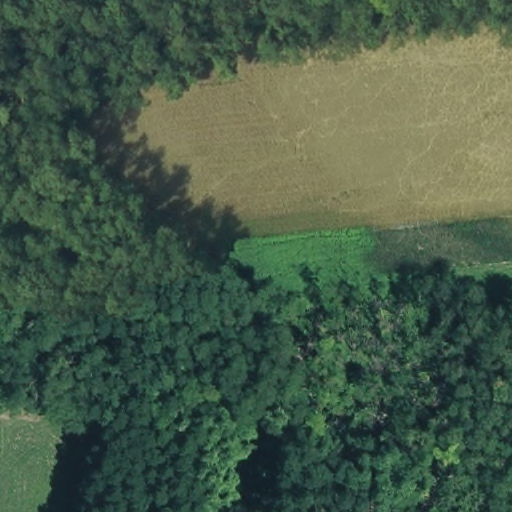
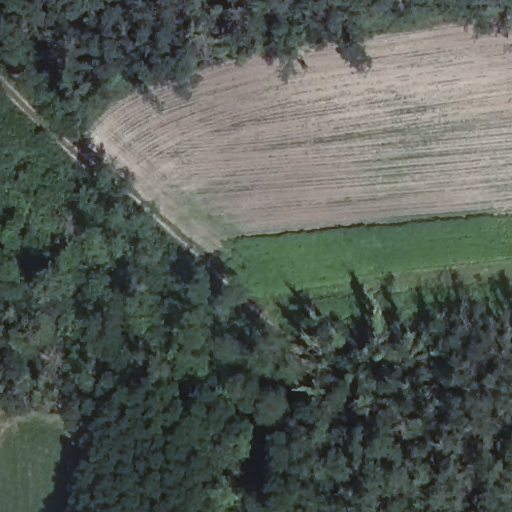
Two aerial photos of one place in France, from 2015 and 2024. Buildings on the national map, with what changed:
unchanged [(16,340),(0,316),(30,297),(44,321),(16,340)]
unchanged [(39,376),(25,353),(48,338),(61,363),(39,376)]

